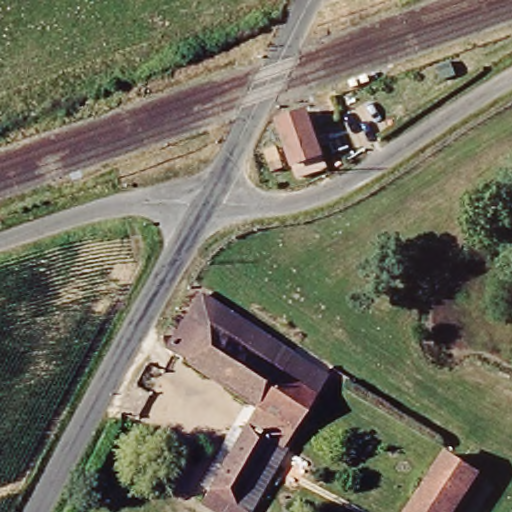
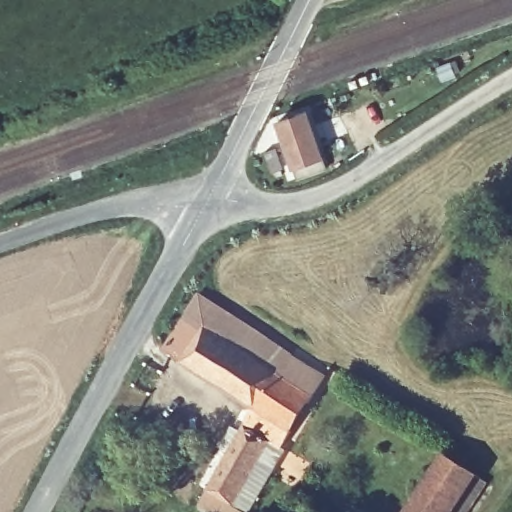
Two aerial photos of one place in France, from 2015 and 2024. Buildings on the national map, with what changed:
unchanged [(302,106),(316,157),(287,165),(273,115),(302,106)]
unchanged [(255,405),(162,350),(194,297),(320,375),(242,512),(217,512),(198,501),(255,405)]
unchanged [(471,473),(449,512),(412,512),(443,457),(471,473)]

